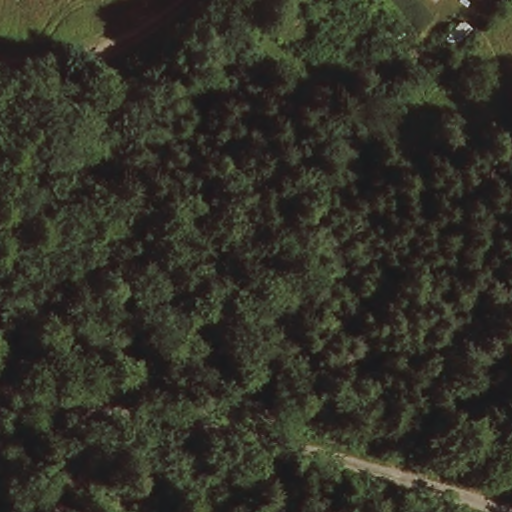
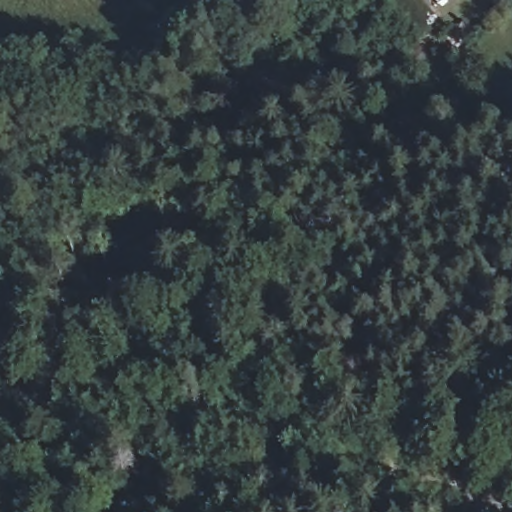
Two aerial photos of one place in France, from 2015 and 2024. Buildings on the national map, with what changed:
unchanged [(435,25),(415,0),(445,0),(453,9),(435,25)]

